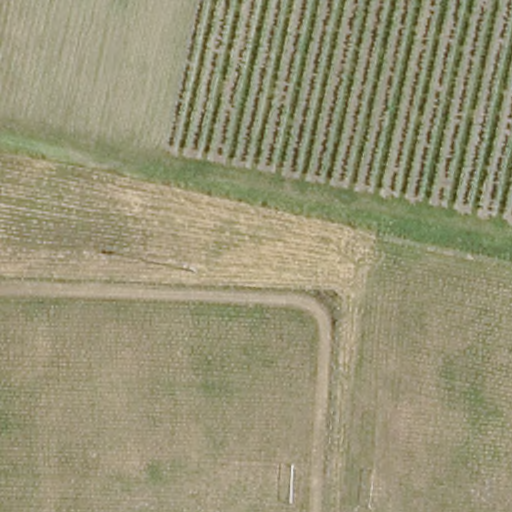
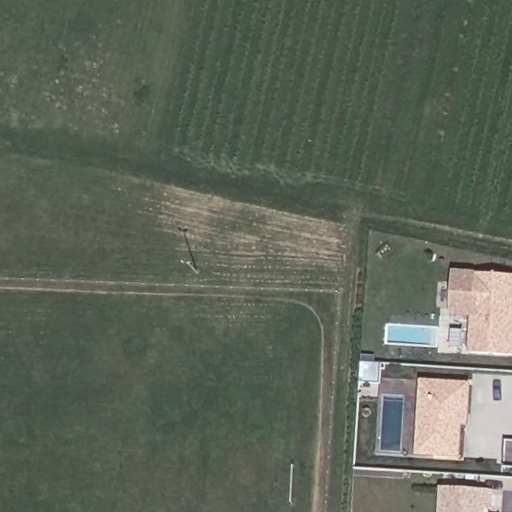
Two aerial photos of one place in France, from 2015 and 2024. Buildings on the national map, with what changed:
new [(468,355),(472,318),(446,317),(450,272),(512,275),(512,358),(468,355)]
new [(468,427),(463,427),(461,460),(414,457),(421,380),(470,382),(468,427)]
new [(440,488),(489,491),(488,507),(482,507),(482,512),(438,512),(440,488)]

